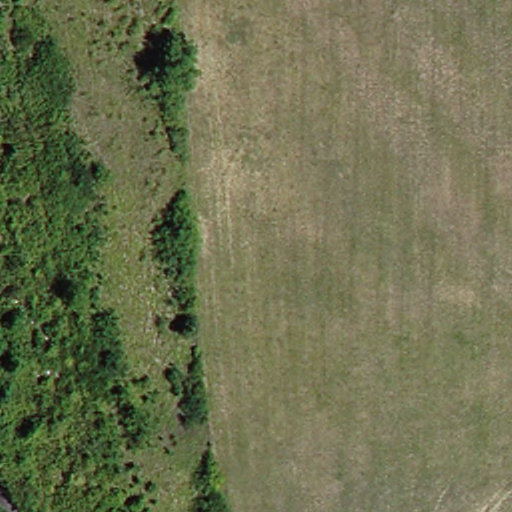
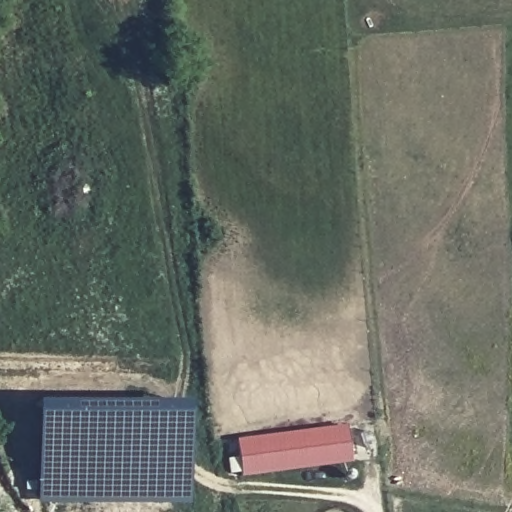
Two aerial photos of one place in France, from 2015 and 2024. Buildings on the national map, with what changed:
new [(188,506),(36,504),(36,403),(192,404),(188,506)]
new [(351,464),(242,478),(237,441),(346,427),(351,464)]

